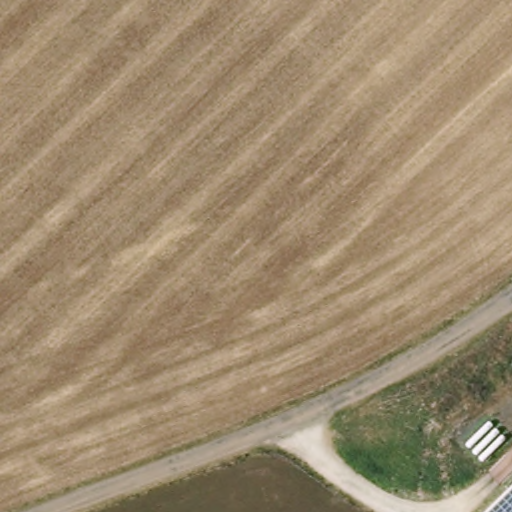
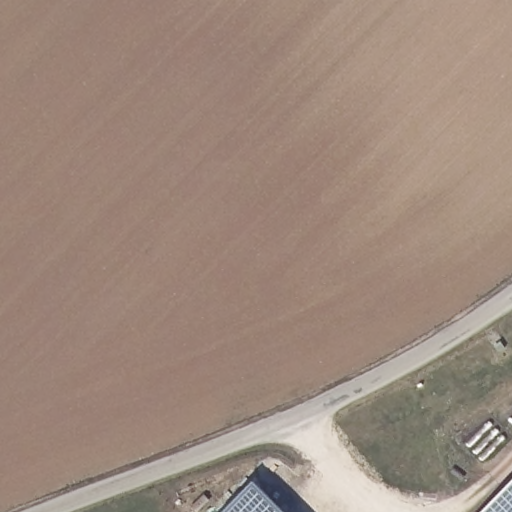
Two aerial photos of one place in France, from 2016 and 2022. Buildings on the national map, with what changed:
new [(287,512),(225,512),(256,481),(287,512)]
unchanged [(484,512),(512,483),(512,512),(484,512)]

